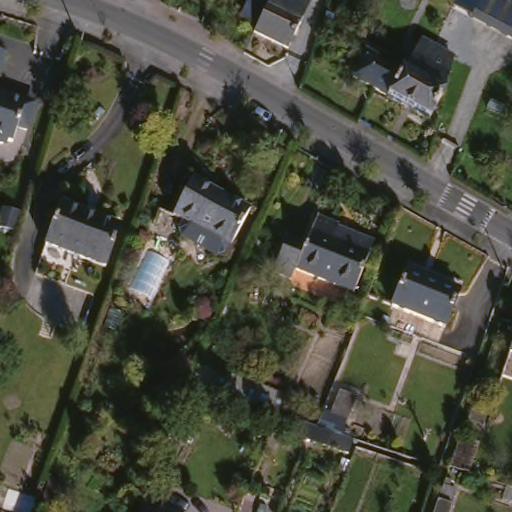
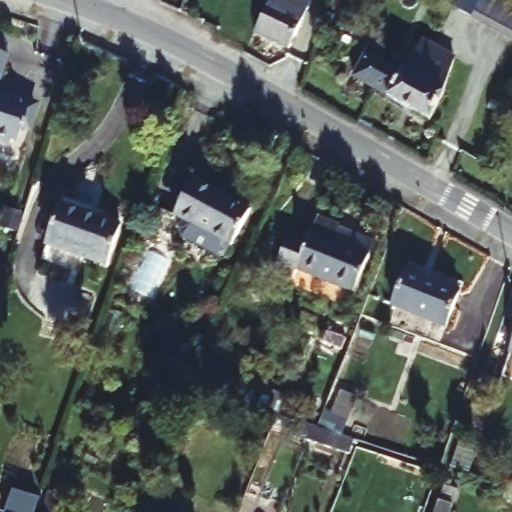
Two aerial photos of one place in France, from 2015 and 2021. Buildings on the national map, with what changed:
unchanged [(272,41),(254,32),(269,0),(289,0),(309,0),(309,2),(302,18),(297,28),(288,48),(272,41)]
unchanged [(512,4),(512,39),(470,17),(471,16),(479,0),(504,0),(510,3),(512,4)]
unchanged [(451,67),(447,78),(442,94),(428,119),(387,96),(387,95),(352,76),(366,52),(401,71),(404,69),(411,56),(419,40),(428,45),(455,58),(451,67)]
unchanged [(0,54),(5,56),(0,71),(0,54)]
unchanged [(11,106),(11,105),(12,105),(12,104),(13,104),(14,104),(15,103),(16,103),(34,109),(26,130),(16,127),(12,142),(7,140),(1,144),(0,144),(0,103),(11,106)]
unchanged [(468,126),(461,147),(446,142),(453,120),(468,126)]
unchanged [(236,235),(231,244),(220,247),(185,230),(184,220),(189,210),(179,205),(197,170),(255,200),(236,235)]
unchanged [(157,211),(165,197),(179,205),(171,219),(157,211)]
unchanged [(119,226),(104,265),(46,244),(60,206),(119,226)]
unchanged [(20,216),(15,233),(0,228),(0,222),(3,211),(20,216)]
unchanged [(296,270),(292,277),(275,270),(288,237),(305,243),(316,219),(337,226),(375,241),(370,255),(368,255),(355,291),(296,270)]
unchanged [(458,293),(445,328),(392,306),(406,273),(458,293)]
unchanged [(210,307),(210,311),(210,314),(208,317),(205,320),(202,320),(199,320),(196,320),(193,318),(191,315),(190,312),(190,308),(191,305),(193,302),(196,300),(200,300),(203,300),(206,302),(209,305),(210,307)]
unchanged [(505,350),(512,332),(512,353),(505,350)]
unchanged [(217,377),(212,393),(199,388),(194,386),(200,371),(205,373),(217,377)]
unchanged [(283,400),(278,416),(249,406),(254,390),(283,400)]
unchanged [(356,398),(348,416),(333,410),(340,391),(356,398)]
unchanged [(486,405),(477,432),(468,429),(476,402),(486,405)]
unchanged [(352,441),(348,454),(295,435),(300,423),(352,441)]
unchanged [(438,500),(443,485),(456,490),(452,505),(449,512),(434,512),(438,500)]
new [(9,489),(36,497),(32,512),(15,512),(3,508),(9,489)]

